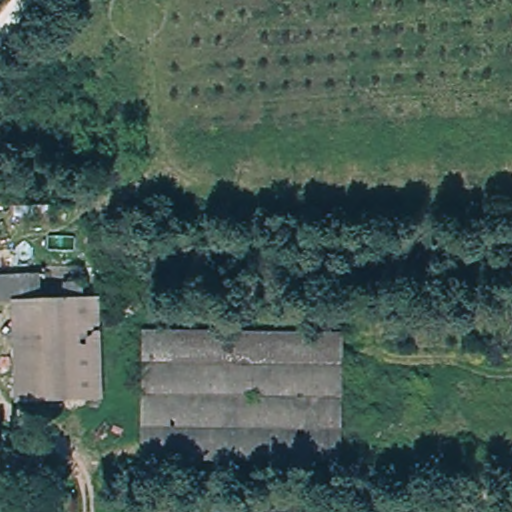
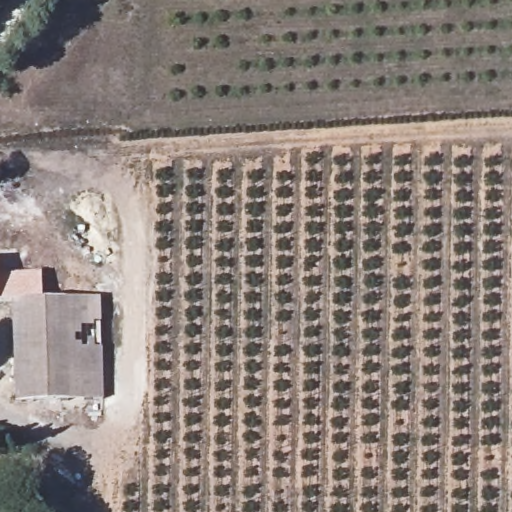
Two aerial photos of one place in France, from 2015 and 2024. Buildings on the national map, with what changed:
unchanged [(0,281),(38,281),(38,311),(22,311),(0,311),(0,281)]
unchanged [(63,405),(63,408),(24,410),(22,311),(38,311),(60,310),(63,405)]
unchanged [(63,405),(60,310),(95,310),(100,404),(63,405)]
demolished [(143,328),(349,331),(346,466),(140,466),(143,328)]
unchanged [(36,499),(35,489),(45,488),(45,498),(36,499)]

